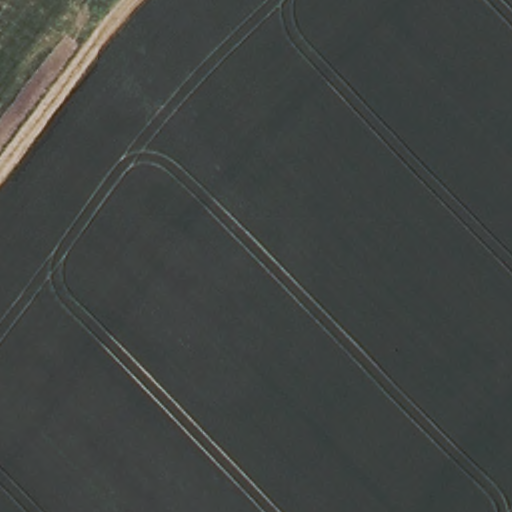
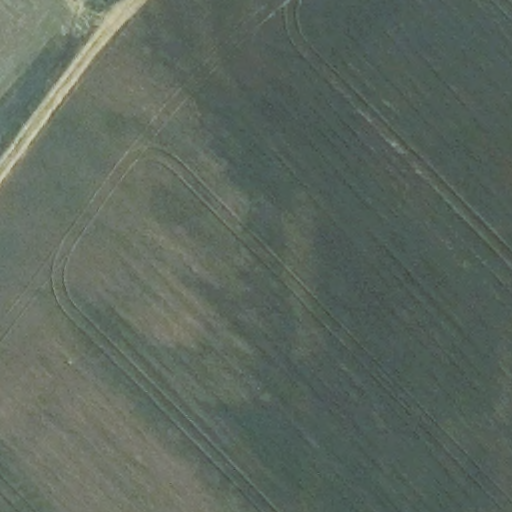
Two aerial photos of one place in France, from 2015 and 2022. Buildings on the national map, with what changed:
[]

